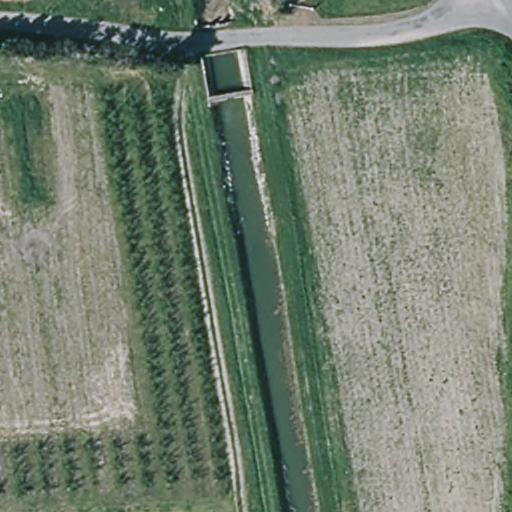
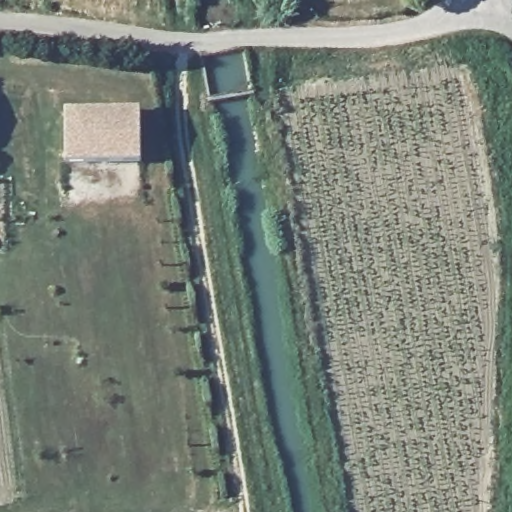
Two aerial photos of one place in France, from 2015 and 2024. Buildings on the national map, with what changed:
new [(140,161),(67,163),(66,114),(137,112),(140,161)]

